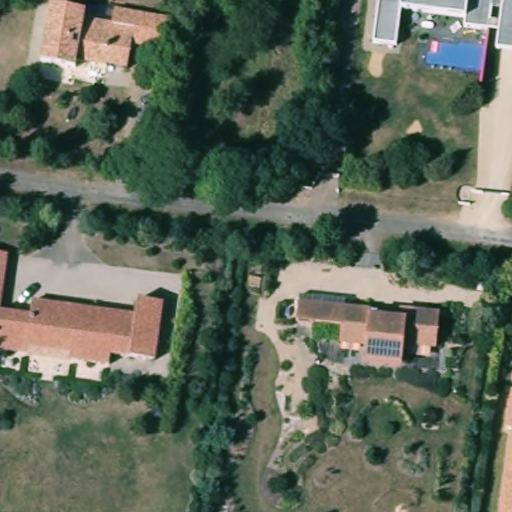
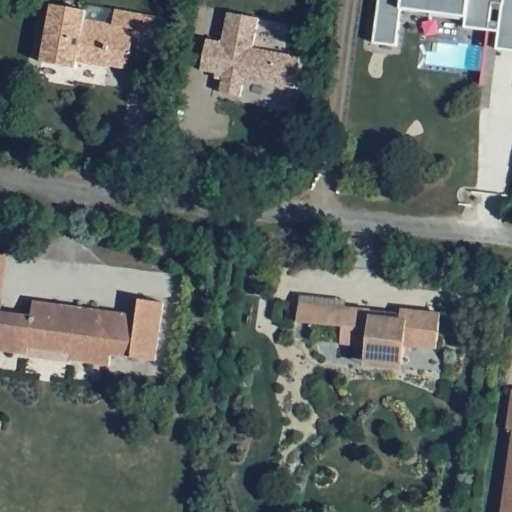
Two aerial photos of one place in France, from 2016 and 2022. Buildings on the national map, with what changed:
unchanged [(512,52),(495,50),(496,31),(464,30),(464,15),(401,10),(397,45),(372,42),(377,0),(512,0),(512,52)]
unchanged [(38,64),(50,4),(86,11),(85,20),(64,17),(55,67),(38,64)]
new [(201,70),(206,39),(222,42),(228,11),(258,17),(253,47),(300,56),(295,87),(244,77),(240,95),(220,92),(222,79),(215,77),(216,72),(201,70)]
unchanged [(132,71),(77,62),(76,71),(55,67),(64,17),(85,20),(136,29),(132,71)]
unchanged [(3,254),(0,283),(0,254),(3,254)]
unchanged [(26,316),(29,301),(134,314),(137,299),(157,302),(149,358),(107,355),(108,363),(67,359),(66,350),(30,346),(28,355),(0,350),(0,312),(26,316)]
unchanged [(366,308),(369,315),(401,316),(401,308),(438,311),(434,352),(402,350),(400,371),(363,368),(364,348),(340,347),(340,327),(297,326),(299,302),(366,308)]
unchanged [(512,512),(498,512),(510,431),(503,430),(508,389),(512,389),(512,512)]

